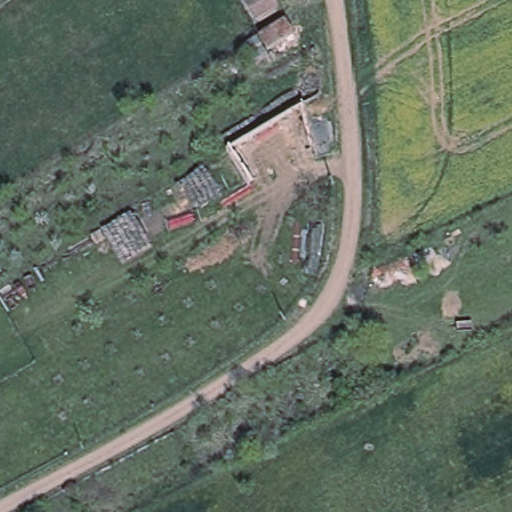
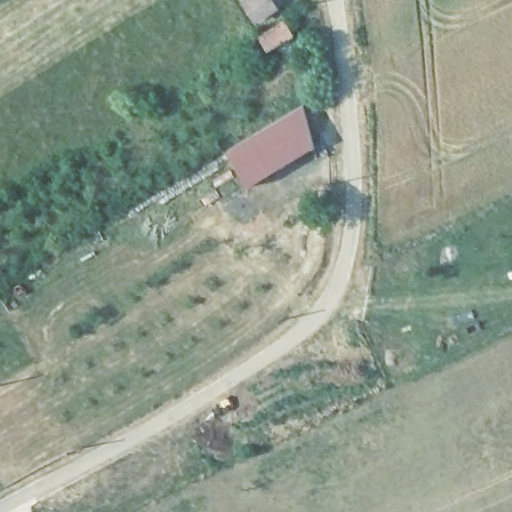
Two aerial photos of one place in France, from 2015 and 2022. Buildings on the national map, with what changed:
unchanged [(270,0),(275,10),(255,22),(243,2),(247,0),(270,0)]
unchanged [(290,20),(299,34),(277,48),(267,33),(290,20)]
new [(228,151),(305,104),(315,146),(250,187),(228,151)]

